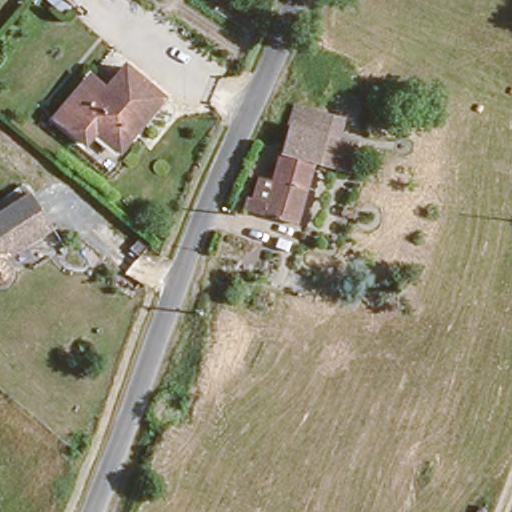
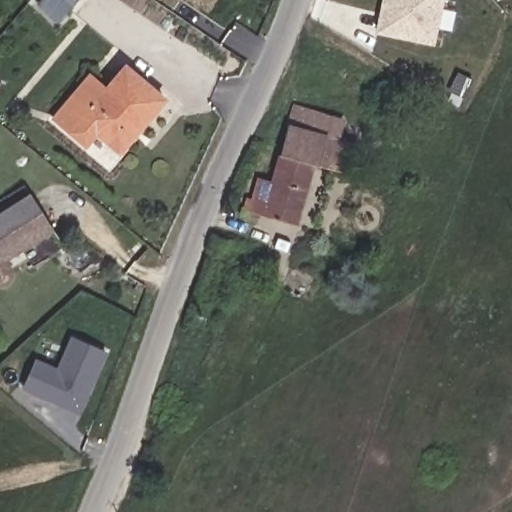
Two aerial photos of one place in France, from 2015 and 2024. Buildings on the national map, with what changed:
unchanged [(66,10),(56,0),(75,0),(66,10)]
new [(374,34),(381,0),(444,0),(442,7),(456,10),(451,31),(438,29),(434,46),(374,34)]
unchanged [(120,147),(99,129),(84,143),(68,127),(51,113),(88,71),(104,86),(126,60),(167,95),(120,147)]
unchanged [(357,147),(363,150),(359,159),(357,168),(319,157),(298,220),(244,206),(249,192),(262,195),(269,174),(278,177),(289,131),(297,105),(317,111),(325,114),(347,120),(339,140),(346,143),(357,147)]
unchanged [(18,262),(18,263),(18,268),(16,274),(13,277),(9,280),(3,280),(0,279),(0,207),(33,185),(59,223),(13,254),(18,262)]
unchanged [(244,191),(240,205),(232,204),(237,189),(244,191)]
new [(84,420),(62,410),(64,406),(56,403),(54,407),(29,396),(39,370),(61,378),(75,345),(109,360),(84,420)]

